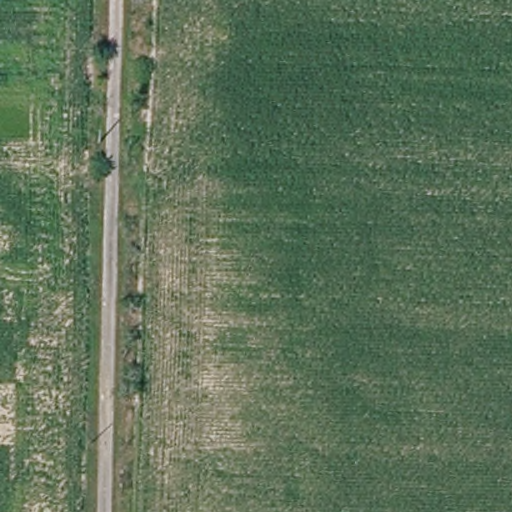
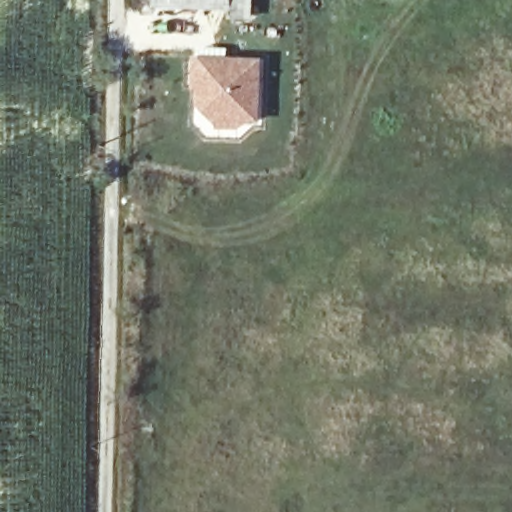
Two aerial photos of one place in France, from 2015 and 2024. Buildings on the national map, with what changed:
new [(157,0),(232,0),(232,9),(157,6),(157,0)]
new [(220,123),(215,115),(201,98),(201,74),(196,74),(197,56),(261,59),(258,117),(242,116),(235,123),(220,123)]

